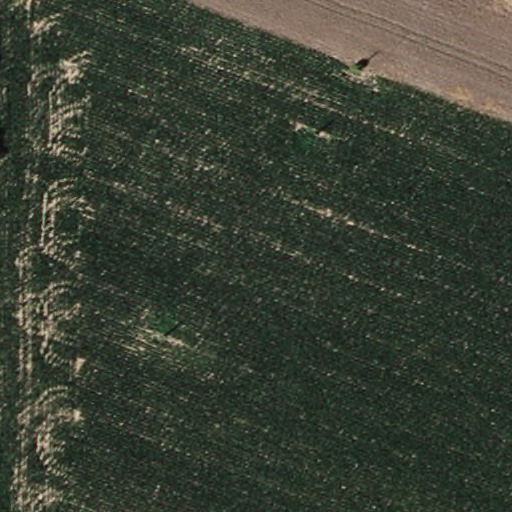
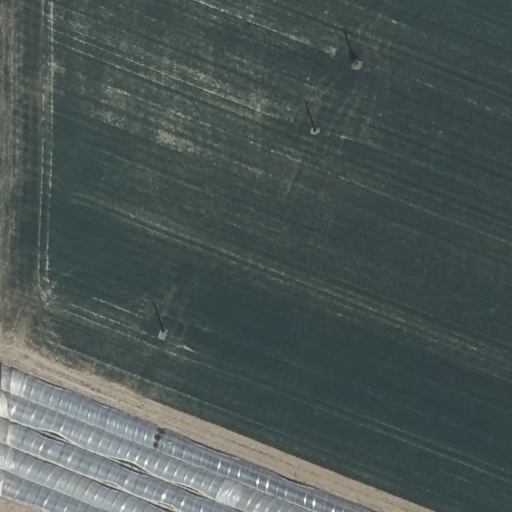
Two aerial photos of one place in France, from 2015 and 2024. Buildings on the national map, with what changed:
new [(44,512),(0,495),(0,365),(376,512),(44,512)]

